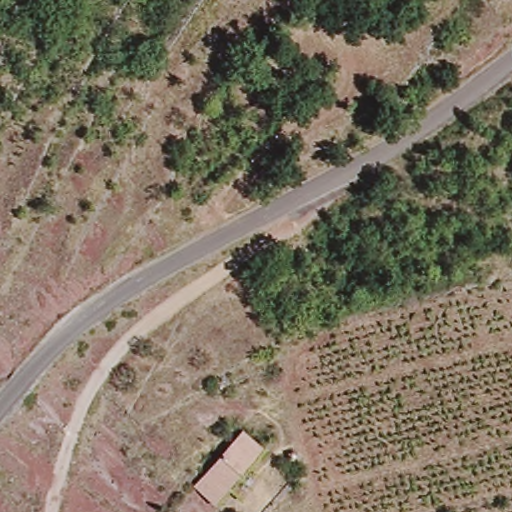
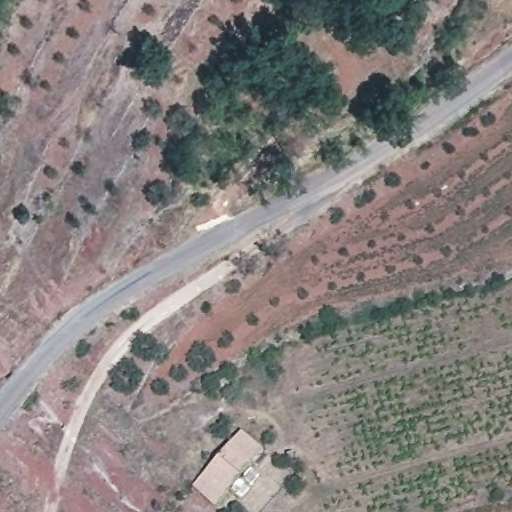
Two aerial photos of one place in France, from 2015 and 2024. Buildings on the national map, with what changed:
unchanged [(194,475),(250,423),(272,448),(218,500),(194,475)]

